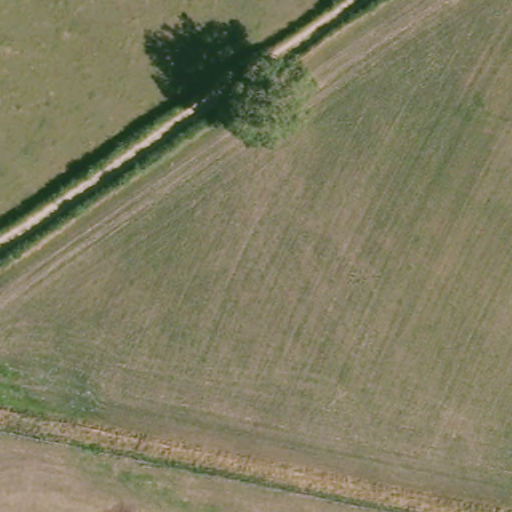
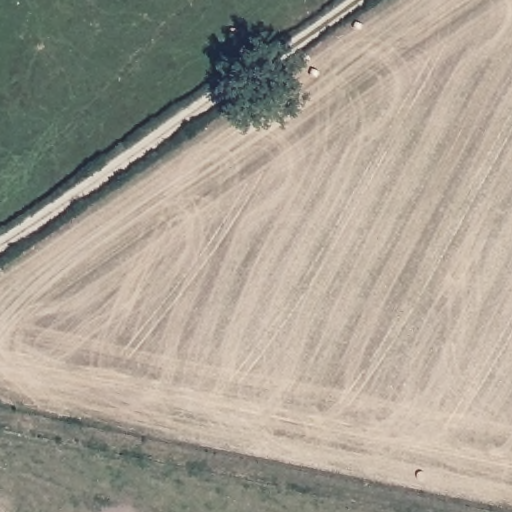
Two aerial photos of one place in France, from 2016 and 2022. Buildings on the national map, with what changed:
[]

